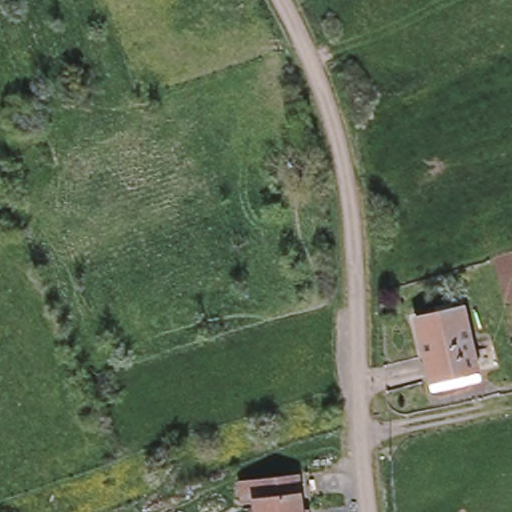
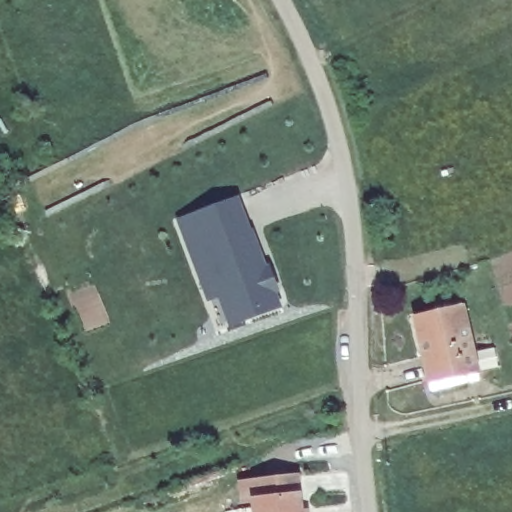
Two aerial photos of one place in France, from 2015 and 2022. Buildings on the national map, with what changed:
new [(252,231),(254,230),(268,265),(271,263),(280,292),(277,293),(283,308),(229,328),(218,298),(207,302),(176,219),(239,196),(252,231)]
unchanged [(414,314),(464,306),(472,346),(422,356),(414,314)]
unchanged [(472,346),(477,373),(427,382),(422,356),(472,346)]
unchanged [(306,512),(255,512),(253,498),(242,499),(241,480),(297,473),(300,508),(306,507),(306,512)]

